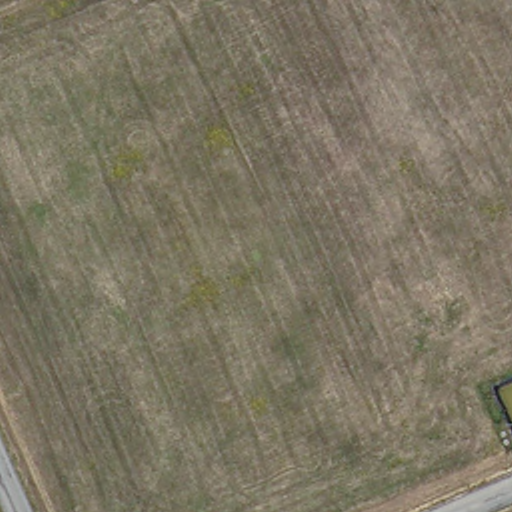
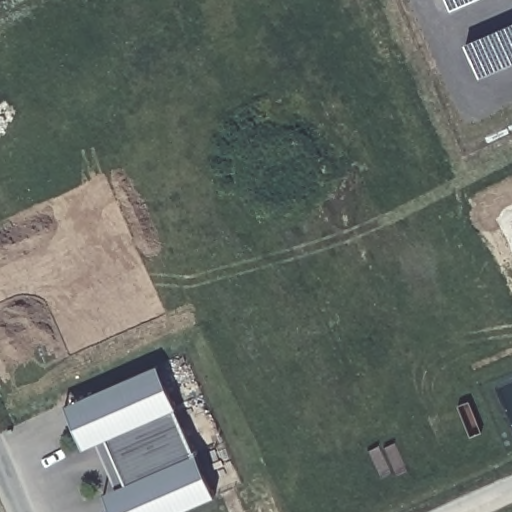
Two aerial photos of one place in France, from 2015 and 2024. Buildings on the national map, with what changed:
new [(176,410),(195,455),(215,497),(181,512),(111,512),(104,493),(118,488),(97,442),(84,448),(65,405),(157,367),(176,410)]

